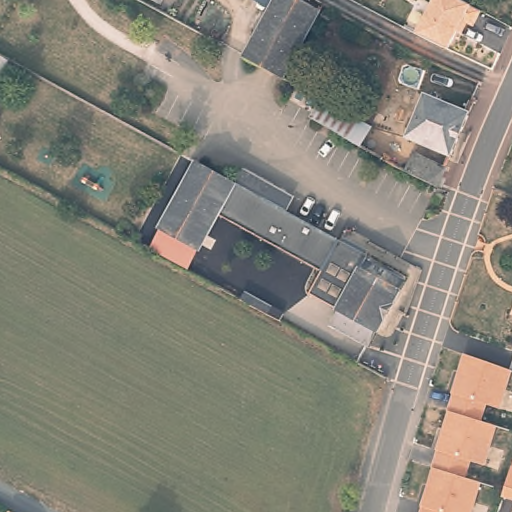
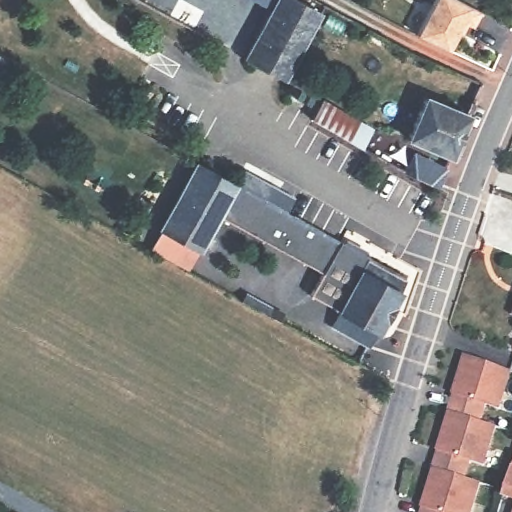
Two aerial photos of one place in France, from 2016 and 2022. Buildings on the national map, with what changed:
unchanged [(285,75),(242,52),(270,0),(304,0),(321,9),(285,75)]
unchanged [(480,11),(472,28),(467,26),(463,36),(457,32),(448,51),(416,34),(433,0),(456,0),(470,7),(480,11)]
unchanged [(383,43),(378,52),(356,39),(360,31),(383,43)]
unchanged [(366,150),(298,114),(311,92),(377,127),(366,150)]
unchanged [(407,137),(428,98),(467,119),(451,161),(407,137)]
unchanged [(440,193),(397,171),(407,152),(447,174),(440,193)]
unchanged [(238,187),(244,178),(261,187),(256,197),(337,241),(319,273),(215,218),(196,252),(156,230),(192,162),(232,185),(238,187)]
unchanged [(319,273),(337,241),(405,277),(377,331),(371,328),(365,342),(330,324),(337,312),(307,297),(320,273),(319,273)]
unchanged [(267,313),(264,322),(232,306),(235,299),(267,313)]
unchanged [(512,316),(512,319),(511,319),(512,316)]
unchanged [(481,422),(497,427),(485,467),(472,462),(467,480),(482,484),(474,512),(419,512),(420,507),(436,450),(447,410),(451,393),(463,354),(512,370),(499,410),(486,405),(481,422)]
unchanged [(512,467),(512,502),(503,499),(512,468),(512,467)]

